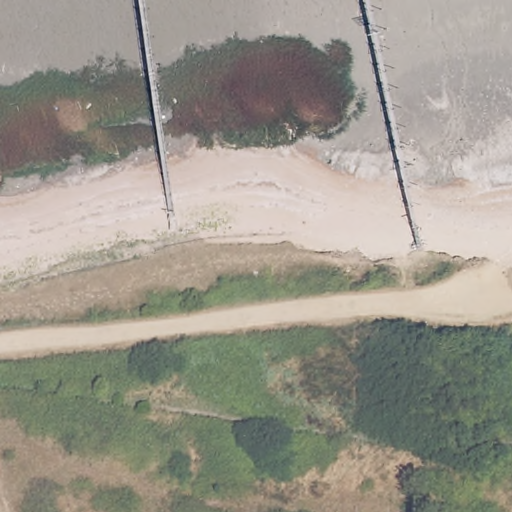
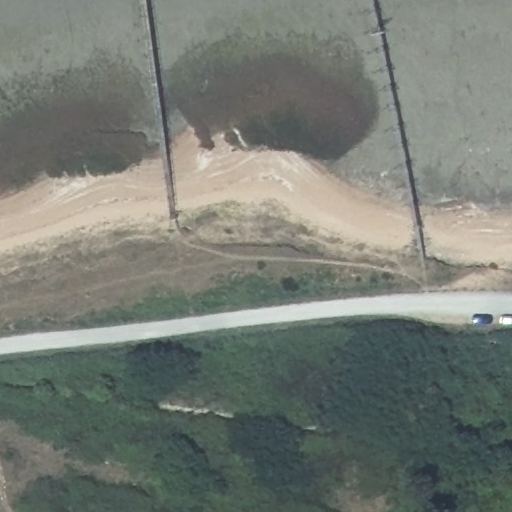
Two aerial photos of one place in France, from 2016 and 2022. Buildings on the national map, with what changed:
[]

